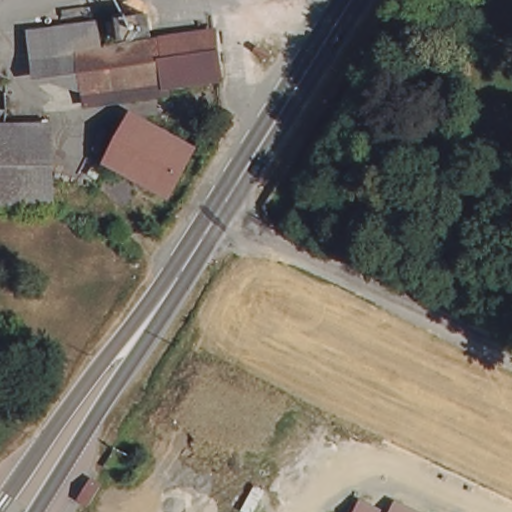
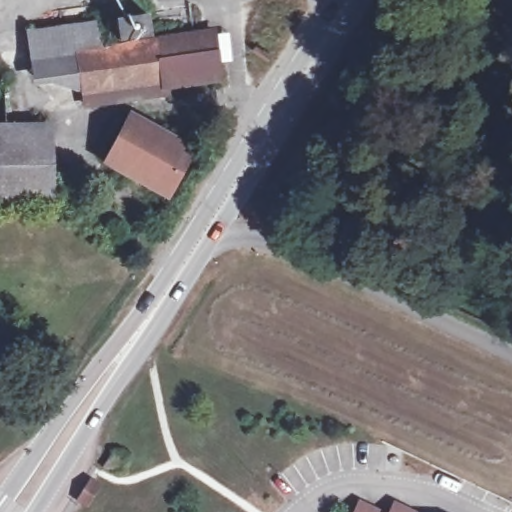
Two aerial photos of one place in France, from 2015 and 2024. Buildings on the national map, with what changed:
unchanged [(150,17),(154,38),(122,42),(120,21),(150,17)]
unchanged [(32,36),(99,24),(104,48),(85,51),(35,58),(32,36)]
unchanged [(104,48),(161,40),(162,56),(165,78),(89,88),(89,86),(85,51),(104,48)]
unchanged [(210,47),(215,76),(166,85),(165,78),(162,56),(210,47)]
unchanged [(38,82),(35,58),(85,51),(89,86),(38,82)]
unchanged [(165,78),(166,85),(167,95),(90,106),(89,88),(165,78)]
unchanged [(194,158),(167,200),(107,165),(135,123),(194,158)]
unchanged [(0,204),(0,132),(57,130),(61,202),(0,204)]
unchanged [(385,512),(353,512),(359,500),(385,512)]
unchanged [(422,512),(387,512),(393,500),(422,512)]

